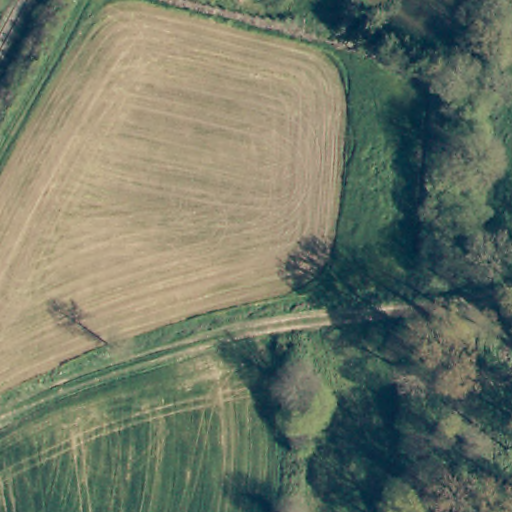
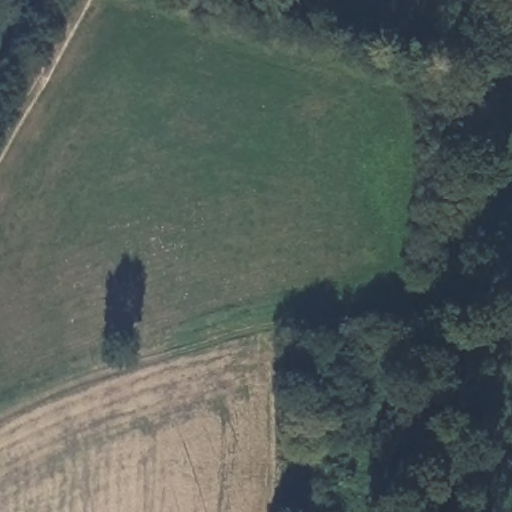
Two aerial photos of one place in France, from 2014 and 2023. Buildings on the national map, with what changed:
[]

